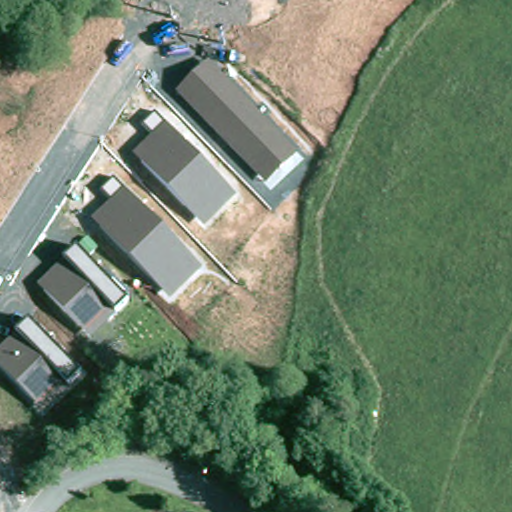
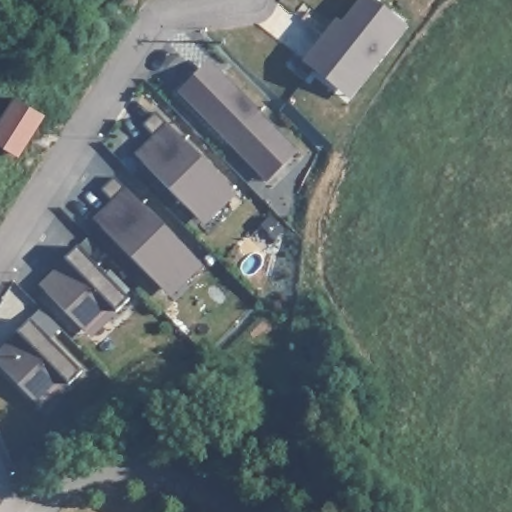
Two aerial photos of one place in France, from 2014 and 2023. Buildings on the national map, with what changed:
new [(358,0),(374,0),(407,26),(349,98),(302,61),(335,19),(340,23),(358,0)]
unchanged [(300,150),(266,181),(179,92),(210,59),(300,150)]
new [(19,156),(0,144),(0,116),(13,95),(45,115),(19,156)]
unchanged [(237,193),(205,226),(132,153),(152,134),(143,123),(155,114),(237,193)]
unchanged [(201,266),(171,298),(89,219),(112,198),(102,188),(116,178),(201,266)]
unchanged [(127,298),(90,339),(39,285),(76,249),(127,298)]
unchanged [(81,372),(40,411),(0,367),(0,348),(29,319),(81,372)]

